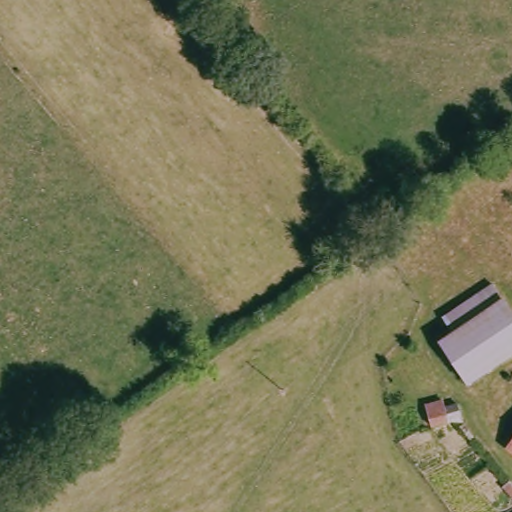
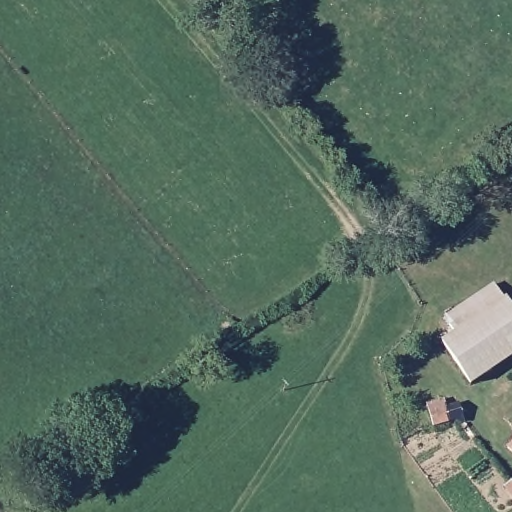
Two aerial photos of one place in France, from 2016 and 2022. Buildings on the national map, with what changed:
unchanged [(512,361),(480,382),(442,317),(497,283),(512,303),(512,361)]
unchanged [(459,422),(447,424),(444,405),(455,403),(459,422)]
unchanged [(512,498),(502,485),(509,480),(512,484),(512,498)]

